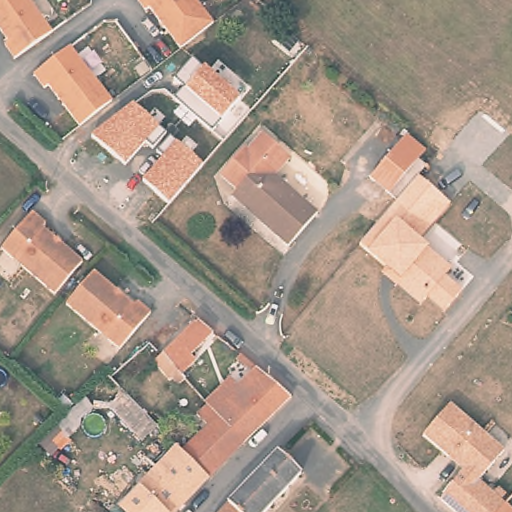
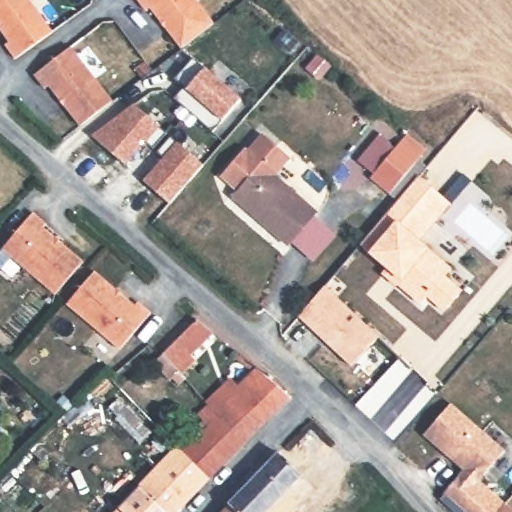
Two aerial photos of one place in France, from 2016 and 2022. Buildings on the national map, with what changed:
unchanged [(52,29),(15,55),(5,41),(9,38),(0,26),(0,0),(31,0),(52,29)]
unchanged [(145,5),(140,8),(134,0),(193,0),(209,19),(177,45),(145,5)]
unchanged [(46,85),(42,88),(31,75),(67,46),(109,99),(78,124),(46,85)]
unchanged [(174,98),(183,87),(175,79),(194,59),(205,68),(241,99),(221,121),(211,131),(174,98)]
unchanged [(133,104),(159,126),(126,166),(92,136),(133,104)]
unchanged [(377,175),(411,131),(431,145),(396,190),(377,175)]
unchanged [(290,245),(234,198),(238,191),(221,177),(243,150),(247,152),(262,134),(276,146),(289,156),(274,175),(318,211),(290,245)]
unchanged [(176,143),(203,165),(169,205),(144,182),(176,143)]
unchanged [(450,204),(420,240),(429,248),(452,266),(445,275),(463,290),(443,312),(426,297),(420,305),(396,285),(395,287),(379,274),(384,268),(367,254),(395,221),(386,214),(418,177),(450,204)]
unchanged [(42,226),(38,230),(79,263),(52,296),(0,253),(0,250),(29,215),(42,226)]
unchanged [(131,305),(135,302),(148,313),(118,350),(64,305),(91,272),(131,305)]
new [(325,285),(379,332),(353,362),(299,316),(325,285)]
unchanged [(193,349),(197,355),(183,368),(165,347),(199,312),(216,327),(193,349)]
unchanged [(212,405),(258,358),(290,388),(262,416),(244,436),(212,405)]
unchanged [(441,495),(468,463),(453,450),(449,454),(424,432),(451,402),(505,449),(479,479),(509,508),(506,512),(458,512),(442,496),(441,495)]
unchanged [(184,447),(210,420),(204,413),(212,405),(244,436),(209,472),(184,447)]
unchanged [(189,494),(172,512),(165,512),(143,489),(146,486),(139,479),(154,463),(177,440),(184,447),(209,472),(189,494)]
unchanged [(299,471),(263,512),(242,512),(229,500),(277,450),(299,471)]
unchanged [(141,491),(143,489),(165,512),(124,512),(132,503),(141,491)]
unchanged [(242,512),(219,512),(229,500),(242,512)]
unchanged [(512,510),(512,512),(506,512),(509,508),(512,510)]

